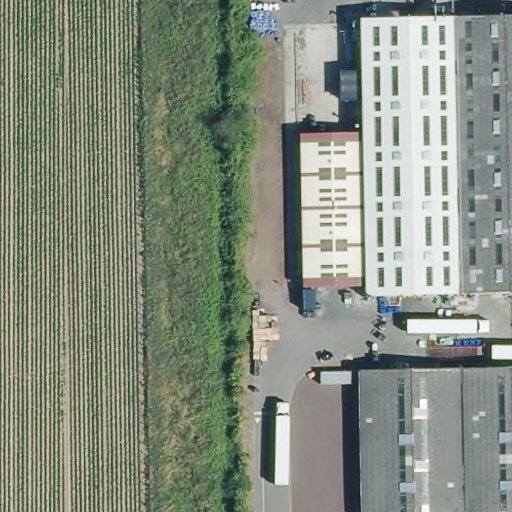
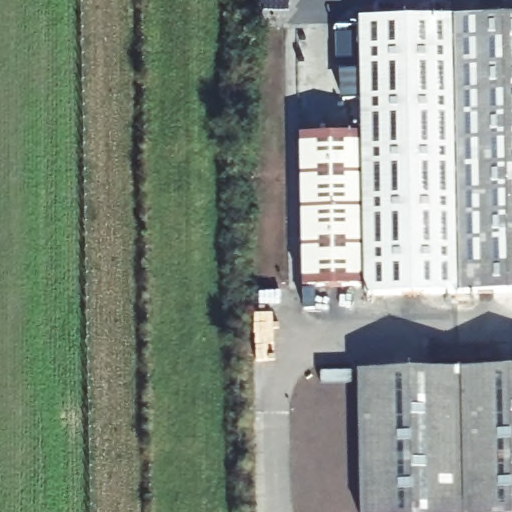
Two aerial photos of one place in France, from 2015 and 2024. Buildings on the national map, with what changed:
unchanged [(460,295),(456,18),(512,17),(512,294),(460,295)]
unchanged [(360,298),(360,290),(357,140),(355,21),(456,18),(460,295),(360,298)]
unchanged [(357,140),(360,290),(297,291),(295,140),(357,140)]
unchanged [(512,370),(512,512),(368,512),(367,371),(512,370)]

